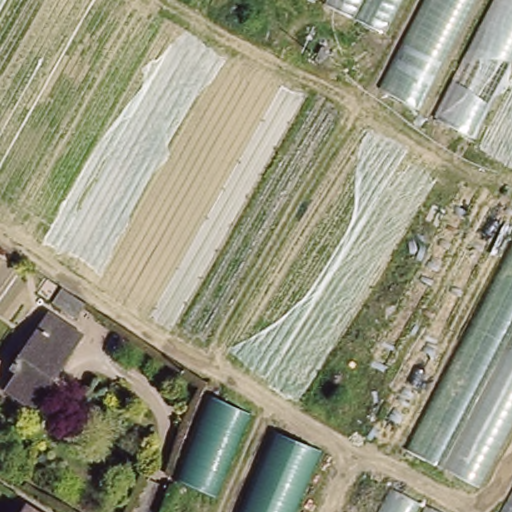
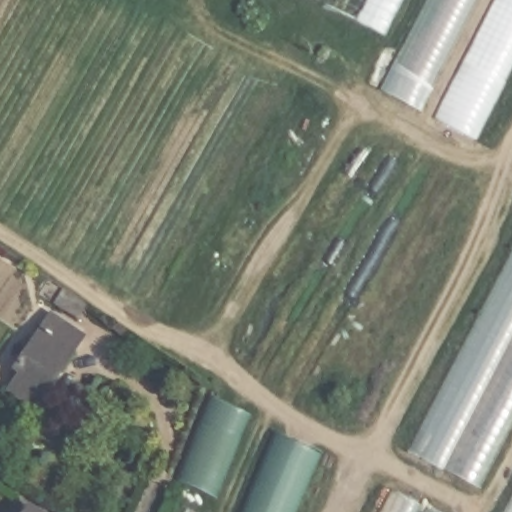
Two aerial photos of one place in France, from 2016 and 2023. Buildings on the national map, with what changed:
unchanged [(327,0),(402,0),(385,34),(325,6),(327,0)]
unchanged [(381,94),(428,0),(472,0),(416,111),(381,94)]
unchanged [(431,127),(496,0),(512,0),(512,57),(467,146),(431,127)]
unchanged [(512,423),(479,486),(407,452),(512,250),(512,423)]
unchanged [(52,314),(85,334),(42,402),(10,382),(52,314)]
unchanged [(215,499),(173,482),(210,394),(250,412),(215,499)]
unchanged [(275,431),(320,450),(294,512),(242,512),(275,431)]
unchanged [(395,483),(447,512),(381,512),(395,483)]
unchanged [(512,512),(503,512),(512,496),(512,512)]
unchanged [(32,511),(34,512),(31,512),(32,511)]

